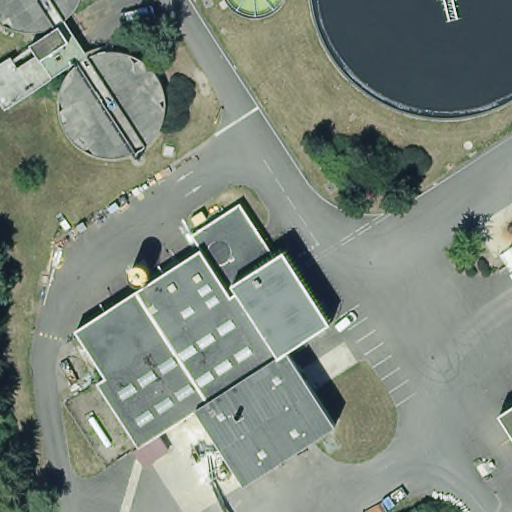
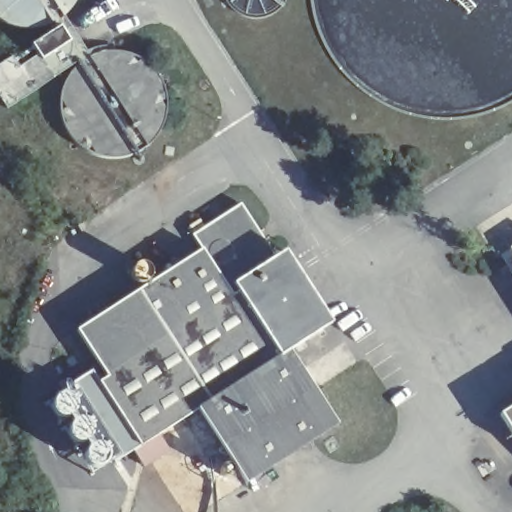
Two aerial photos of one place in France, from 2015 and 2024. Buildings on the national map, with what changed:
unchanged [(60,65),(64,72),(5,111),(0,103),(0,66),(61,27),(79,52),(60,65)]
unchanged [(194,419),(98,467),(87,467),(81,461),(52,413),(50,405),(52,397),(95,368),(73,333),(200,250),(188,233),(239,201),(277,255),(287,249),(334,326),(293,351),(338,426),(240,485),(194,419)]
unchanged [(507,275),(512,271),(512,281),(507,275)]
unchanged [(499,415),(512,406),(512,436),(499,415)]

